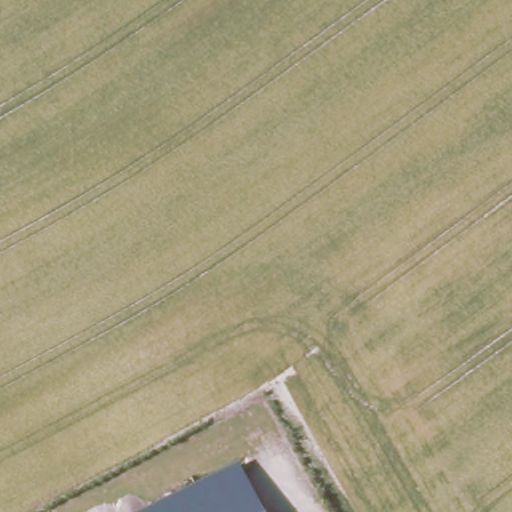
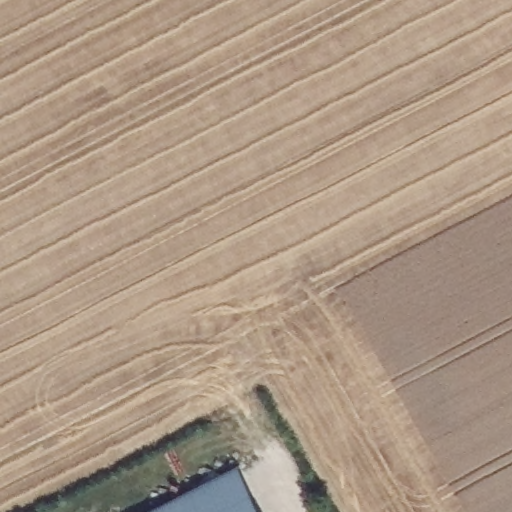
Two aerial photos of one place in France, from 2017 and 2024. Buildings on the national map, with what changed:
unchanged [(240,464),(264,512),(145,512),(240,464)]

